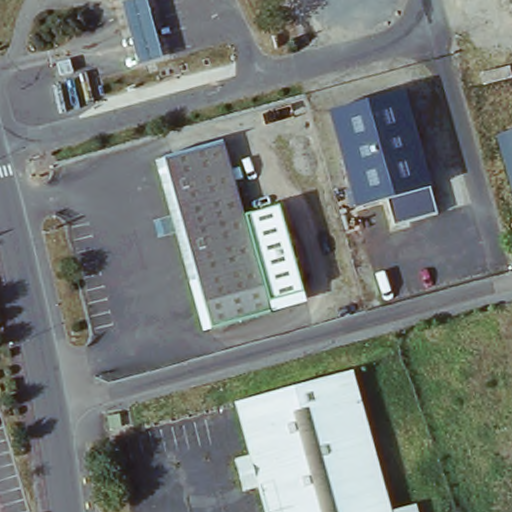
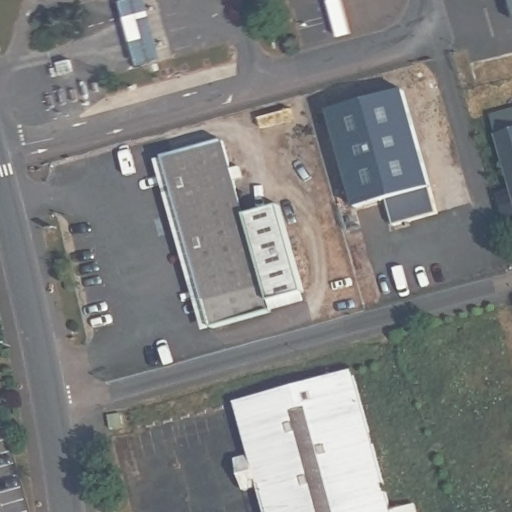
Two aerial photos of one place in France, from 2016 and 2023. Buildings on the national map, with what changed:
unchanged [(134,61),(115,0),(143,0),(158,54),(134,61)]
unchanged [(400,84),(435,212),(393,222),(386,199),(360,204),(331,104),(400,84)]
unchanged [(496,135),(512,132),(512,190),(496,135)]
unchanged [(207,141),(228,215),(264,206),(289,292),(253,302),(257,312),(198,329),(146,157),(207,141)]
unchanged [(342,379),(386,510),(411,501),(414,512),(258,512),(256,506),(240,510),(231,476),(245,472),(223,414),(342,379)]
unchanged [(83,420),(94,416),(99,429),(88,432),(83,420)]

